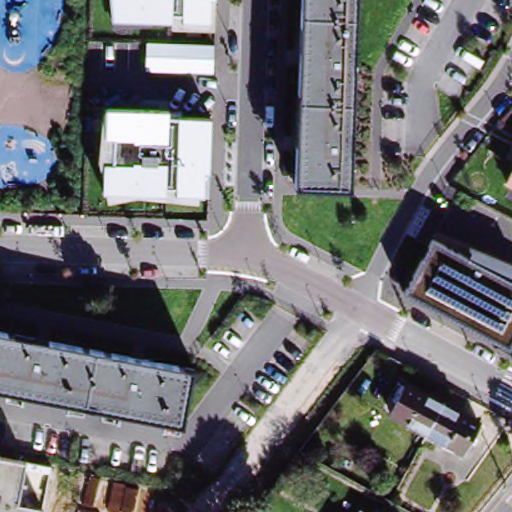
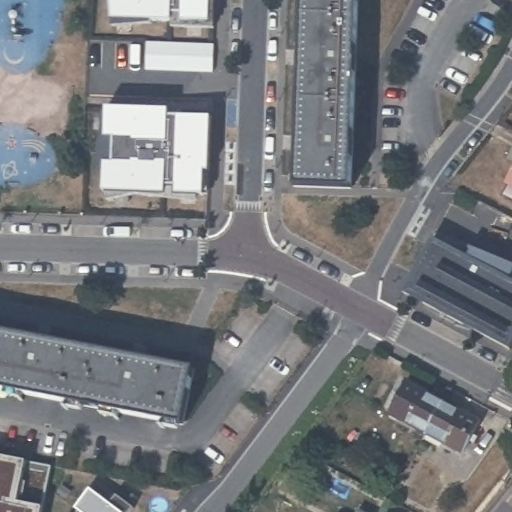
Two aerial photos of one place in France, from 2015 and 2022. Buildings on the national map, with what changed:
unchanged [(216,28),(109,20),(108,0),(218,0),(216,28)]
unchanged [(296,186),(303,0),(358,0),(351,189),(296,186)]
unchanged [(216,45),(215,74),(144,72),(146,41),(216,45)]
unchanged [(212,194),(201,195),(200,205),(101,200),(100,174),(96,157),(99,125),(102,125),(104,108),(214,118),(212,194)]
unchanged [(502,183),(512,165),(512,188),(502,183)]
unchanged [(466,256),(469,248),(512,265),(512,280),(512,351),(511,352),(406,293),(433,242),(466,256)]
unchanged [(183,425),(0,389),(0,333),(193,371),(183,425)]
unchanged [(384,409),(400,380),(437,400),(421,430),(384,409)]
unchanged [(473,420),(458,449),(421,430),(437,400),(473,420)]
unchanged [(42,508),(41,512),(0,512),(0,456),(50,465),(42,508)]
new [(81,511),(75,507),(87,491),(90,487),(98,493),(110,502),(114,496),(116,493),(123,498),(134,506),(130,512),(84,512),(82,510),(81,511)]
new [(81,511),(82,510),(84,512),(77,512),(79,510),(81,511)]

